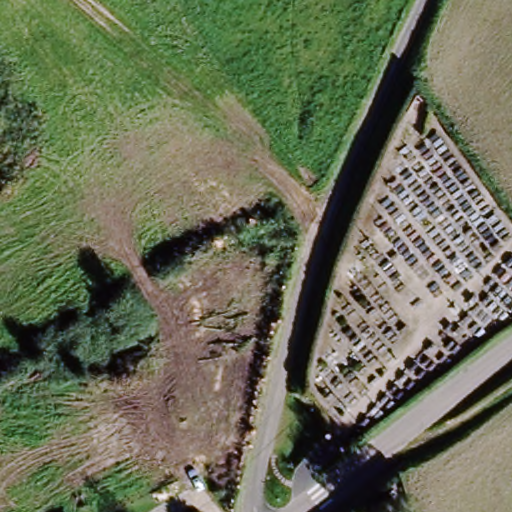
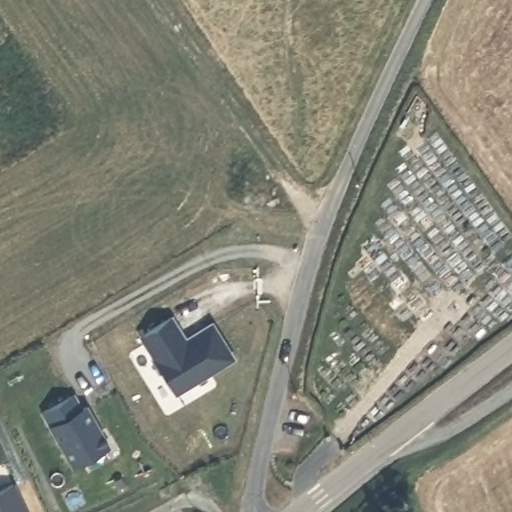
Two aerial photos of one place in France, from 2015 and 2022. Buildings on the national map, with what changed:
new [(139,332),(170,313),(179,328),(184,336),(179,339),(210,320),(231,355),(174,390),(139,332)]
new [(76,401),(84,415),(89,412),(111,451),(75,471),(46,417),(76,401)]
new [(28,512),(0,512),(0,490),(14,482),(28,512)]

